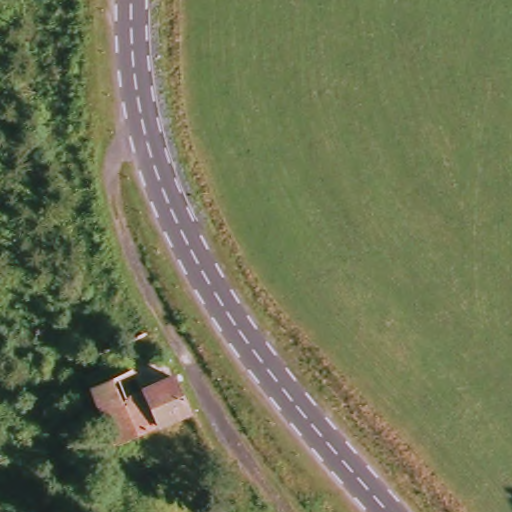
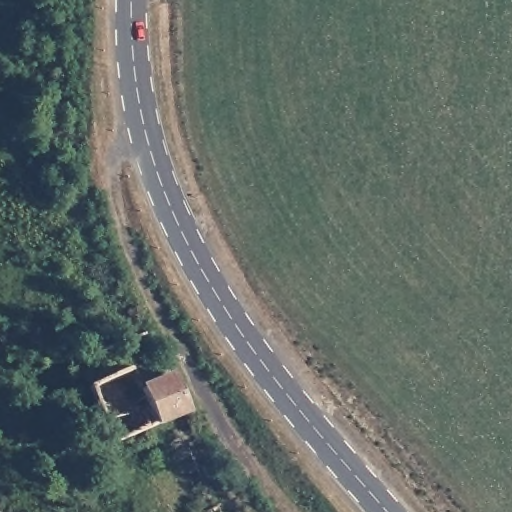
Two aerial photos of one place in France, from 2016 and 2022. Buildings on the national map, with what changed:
unchanged [(94,388),(139,370),(165,359),(171,376),(177,375),(197,416),(118,446),(94,388)]

